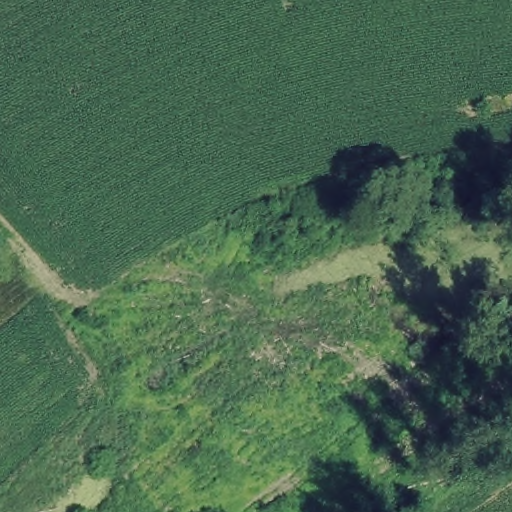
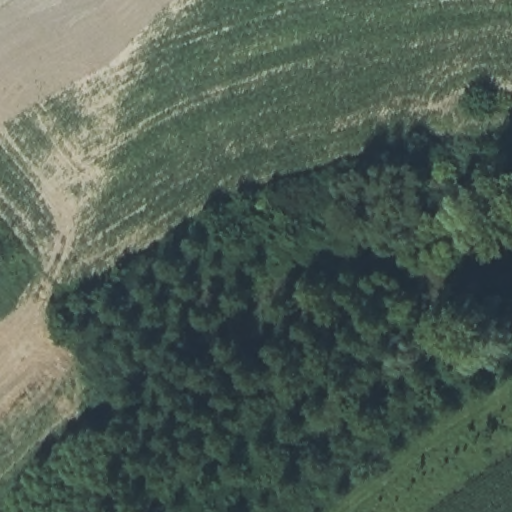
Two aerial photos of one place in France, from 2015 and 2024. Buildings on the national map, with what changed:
[]

